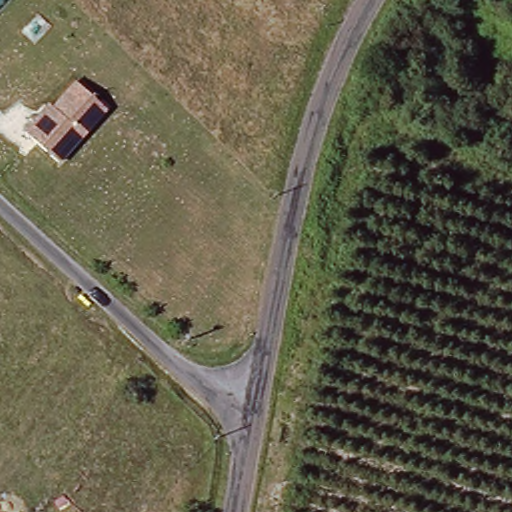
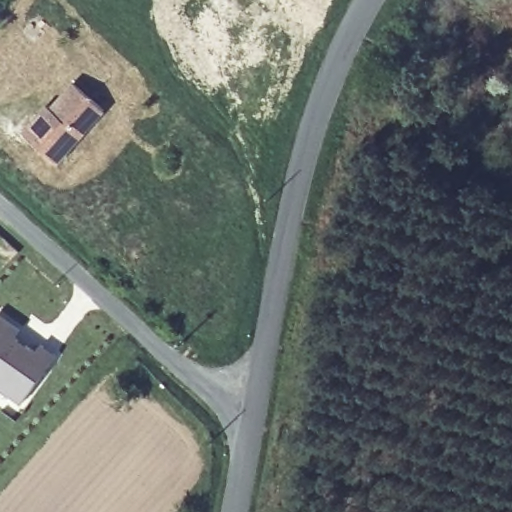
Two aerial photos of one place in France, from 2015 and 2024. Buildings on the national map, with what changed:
unchanged [(21,129),(45,101),(51,106),(74,79),(106,110),(59,163),(21,129)]
new [(16,330),(10,338),(31,352),(36,345),(52,356),(19,402),(0,388),(0,319),(16,330)]

